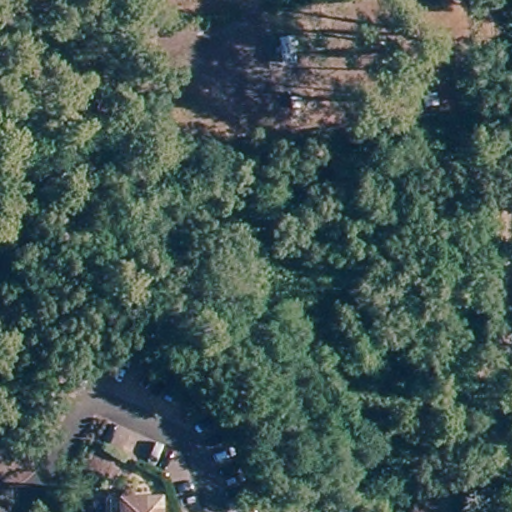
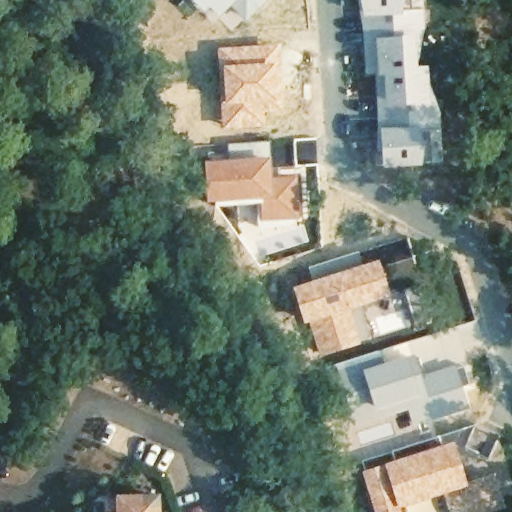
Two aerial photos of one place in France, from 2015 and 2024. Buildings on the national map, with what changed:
new [(229,9),(216,20),(211,15),(210,16),(206,12),(204,15),(188,0),(267,0),(244,22),(229,9)]
new [(408,0),(419,0),(420,15),(415,15),(415,14),(409,15),(408,0)]
unchanged [(298,65),(281,65),(278,35),(295,35),(298,65)]
new [(263,113),(265,127),(222,129),(218,48),(278,45),(281,112),(263,113)]
new [(440,166),(428,167),(373,170),(372,159),(382,158),(378,158),(376,125),(373,79),(377,79),(420,76),(420,77),(422,107),(422,106),(431,106),(432,120),(433,135),(437,135),(440,166)]
new [(316,136),(318,165),(295,166),(292,139),(316,136)]
new [(228,157),(227,145),(268,141),(271,175),(298,173),(302,218),(260,222),(258,201),(206,204),(203,161),(228,157)]
new [(379,258),(391,298),(354,311),(363,343),(318,357),(307,323),(303,325),(291,286),(379,258)]
new [(380,349),(400,343),(402,349),(390,352),(391,356),(415,351),(422,372),(462,363),(463,386),(470,410),(413,428),(407,410),(385,417),(381,411),(375,413),(366,389),(360,370),(383,361),(380,349)]
new [(380,349),(383,361),(360,370),(366,389),(337,394),(332,365),(380,349)]
new [(454,441),(467,487),(406,508),(407,512),(374,512),(361,471),(454,441)]
new [(496,473),(506,508),(495,512),(449,512),(444,495),(467,487),(466,482),(496,473)]
unchanged [(101,498),(114,498),(141,497),(158,497),(159,510),(159,512),(102,512),(101,498)]

